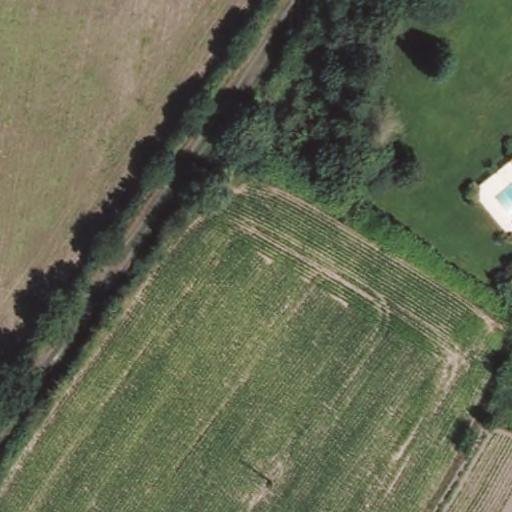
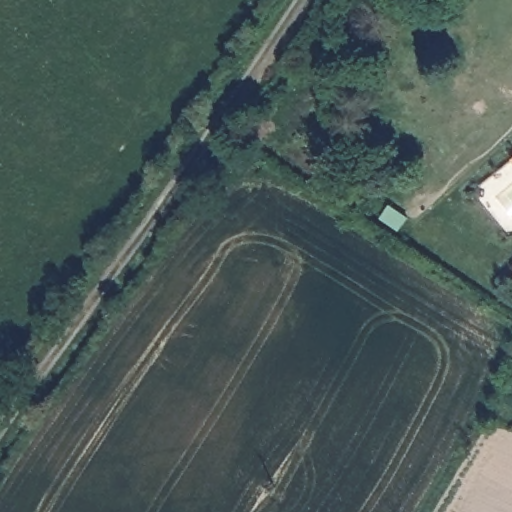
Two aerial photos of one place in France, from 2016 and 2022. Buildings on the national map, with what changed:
unchanged [(509,157),(512,155),(512,162),(509,157)]

